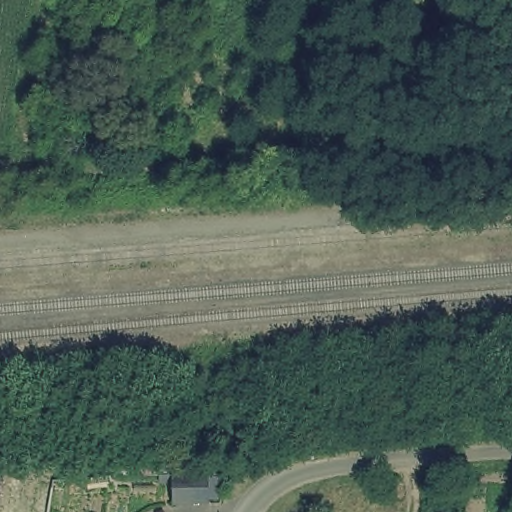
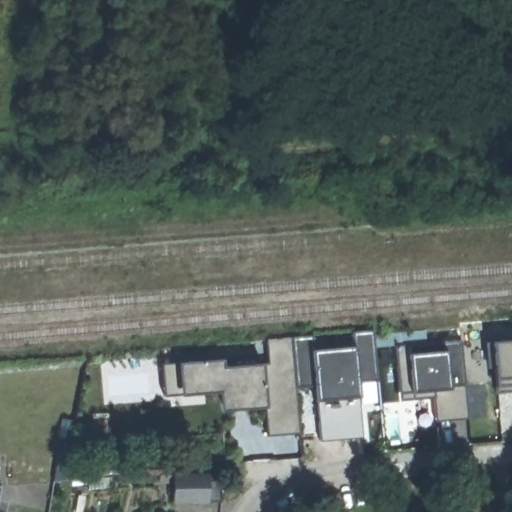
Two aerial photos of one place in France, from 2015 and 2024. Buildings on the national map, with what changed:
new [(385,451),(380,381),(361,383),(364,438),(321,441),(321,435),(270,437),(268,410),(224,411),(222,395),(167,398),(165,366),(223,362),(223,370),(270,366),(269,341),(313,337),(315,353),(354,349),(353,333),(374,332),(375,350),(462,341),(469,420),(438,422),(439,448),(385,451)]
new [(498,367),(490,368),(488,343),(512,342),(512,391),(499,391),(498,367)]
unchanged [(176,474),(206,474),(206,501),(176,502),(176,474)]

